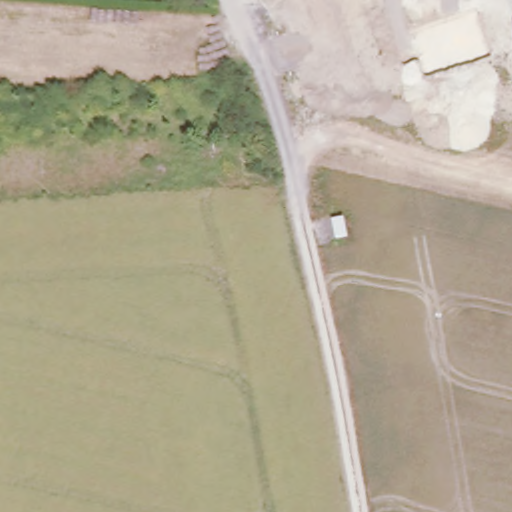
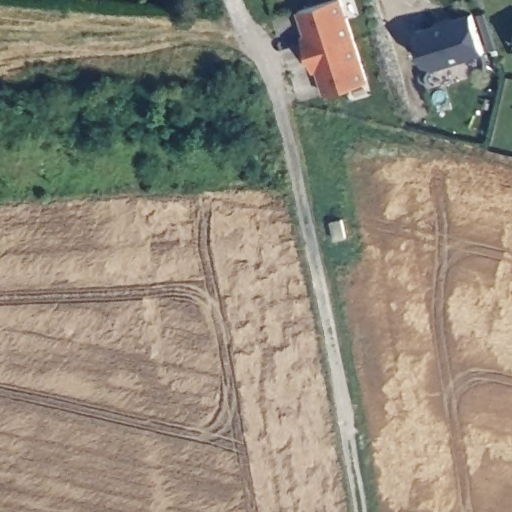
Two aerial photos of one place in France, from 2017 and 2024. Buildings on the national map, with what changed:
new [(323,0),(339,0),(365,79),(324,92),(315,65),(311,67),(302,35),(305,34),(297,8),(323,0)]
new [(469,13),(480,50),(429,66),(422,63),(412,30),(469,13)]
new [(347,233),(337,234),(333,216),(344,214),(347,233)]

